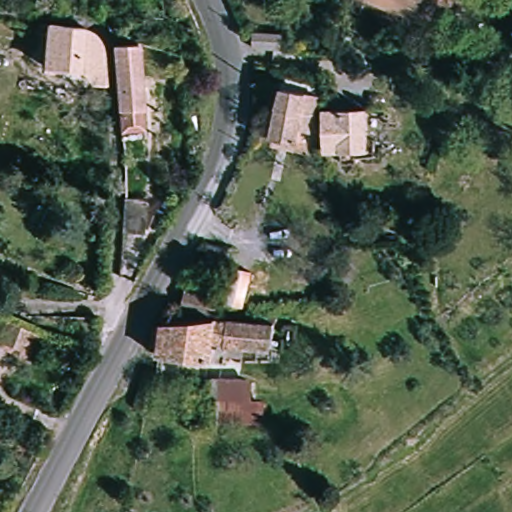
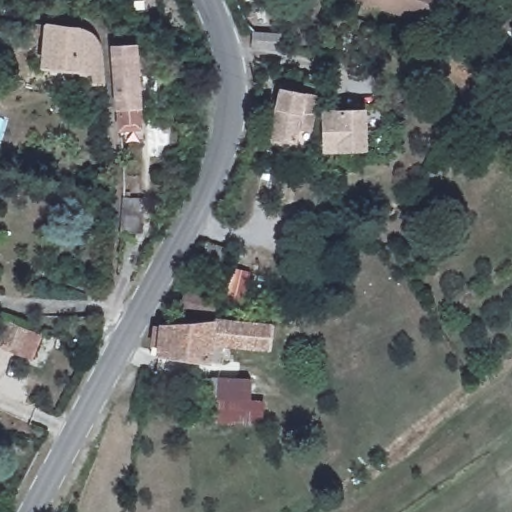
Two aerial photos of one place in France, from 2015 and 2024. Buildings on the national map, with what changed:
unchanged [(362,0),(459,0),(445,33),(361,0),(362,0)]
unchanged [(50,39),(38,38),(38,26),(86,32),(83,71),(47,69),(50,39)]
unchanged [(261,33),(282,36),(288,36),(287,52),(261,48),(261,33)]
unchanged [(112,44),(134,44),(139,128),(117,129),(112,44)]
unchanged [(312,121),(303,120),(301,143),(278,140),(282,91),(316,94),(312,121)]
unchanged [(329,127),(328,113),(367,112),(368,151),(337,152),(336,161),(323,162),(323,145),(317,146),(315,129),(329,127)]
unchanged [(125,197),(148,199),(145,231),(124,229),(125,197)]
unchanged [(230,249),(228,263),(206,261),(207,245),(230,249)]
unchanged [(257,272),(247,308),(224,303),(235,267),(257,272)]
unchanged [(215,314),(179,305),(183,284),(222,293),(215,314)]
unchanged [(45,333),(32,360),(0,347),(0,326),(2,319),(45,333)]
unchanged [(272,326),(269,351),(212,345),(209,361),(159,356),(162,327),(218,321),(272,326)]
unchanged [(251,400),(265,400),(266,424),(216,426),(216,376),(251,376),(251,400)]

